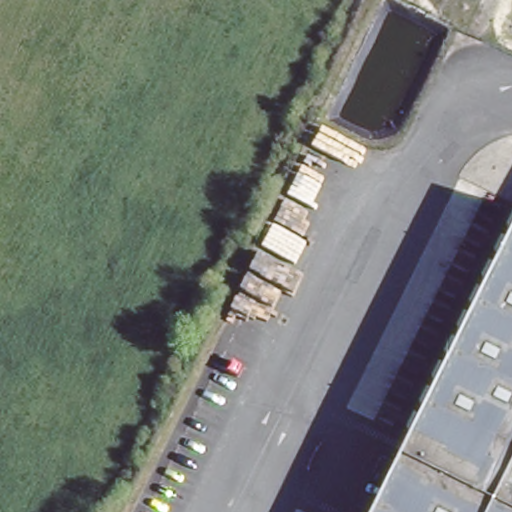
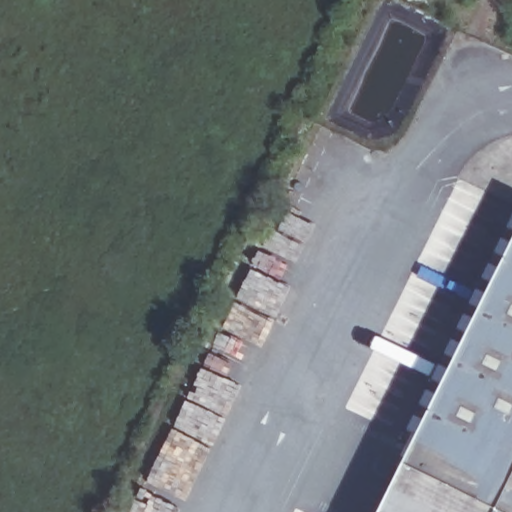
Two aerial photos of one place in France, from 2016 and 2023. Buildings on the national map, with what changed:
unchanged [(512,512),(384,512),(512,249),(512,512)]

